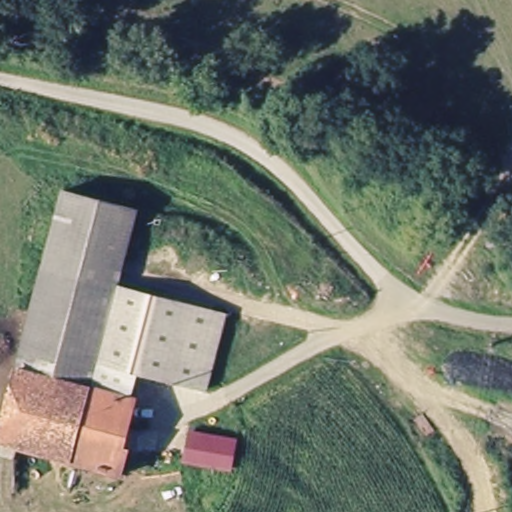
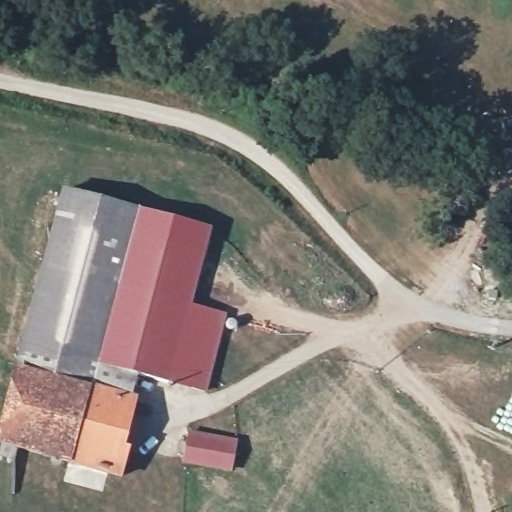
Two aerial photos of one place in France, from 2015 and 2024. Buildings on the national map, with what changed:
unchanged [(20,370),(63,191),(137,208),(116,281),(104,329),(96,359),(89,386),(53,378),(20,370)]
new [(116,281),(136,209),(212,229),(192,302),(116,281)]
unchanged [(230,312),(210,390),(195,386),(96,359),(104,329),(116,281),(230,312)]
unchanged [(20,370),(53,378),(39,454),(4,444),(20,370)]
unchanged [(111,471),(39,454),(53,378),(89,386),(130,396),(117,445),(111,471)]
unchanged [(240,446),(235,473),(182,463),(189,435),(230,444),(240,446)]

